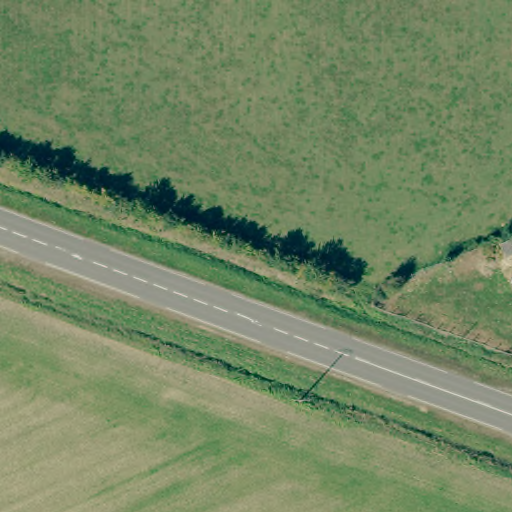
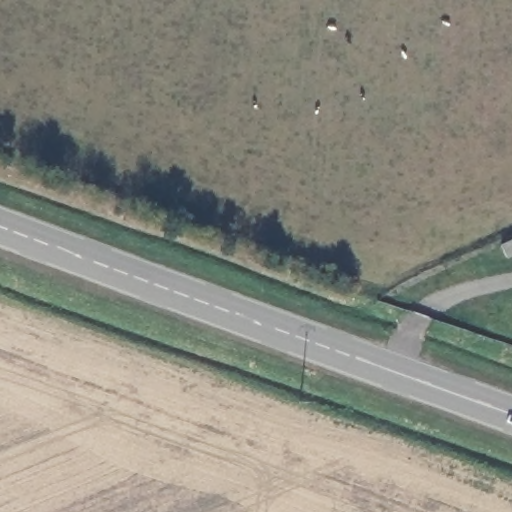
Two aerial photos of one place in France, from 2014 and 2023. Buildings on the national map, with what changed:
unchanged [(503,232),(512,228),(512,242),(508,244),(503,232)]

